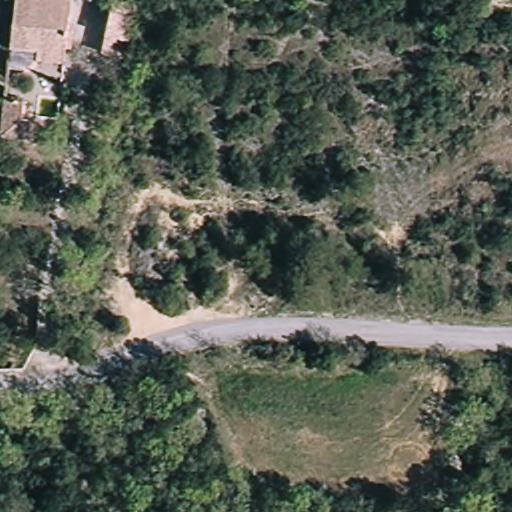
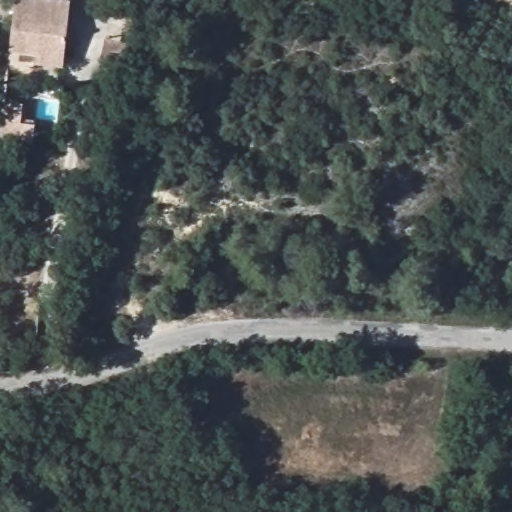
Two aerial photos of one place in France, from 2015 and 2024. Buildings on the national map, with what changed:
unchanged [(29,0),(70,4),(64,66),(38,64),(38,56),(10,51),(13,0),(29,0)]
unchanged [(119,0),(137,3),(128,57),(107,54),(116,0),(119,0)]
unchanged [(5,107),(23,108),(21,126),(34,126),(32,145),(3,143),(5,107)]

